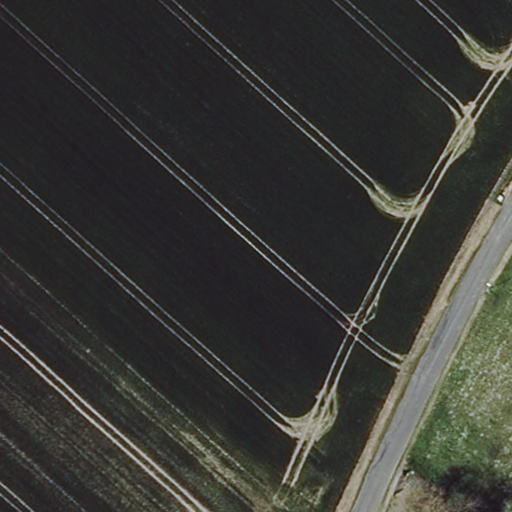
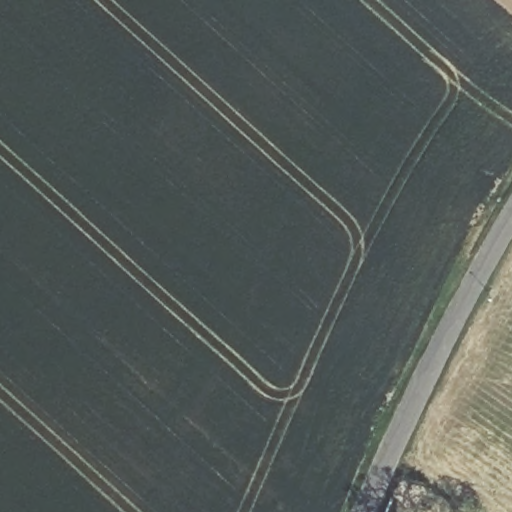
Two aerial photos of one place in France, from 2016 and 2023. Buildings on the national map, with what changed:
[]

